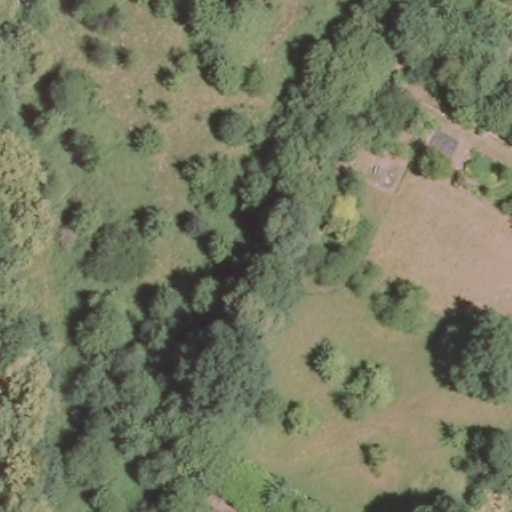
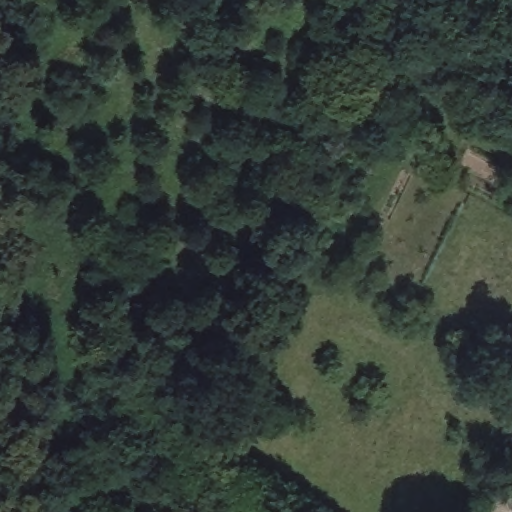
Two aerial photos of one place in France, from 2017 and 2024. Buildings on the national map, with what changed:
unchanged [(333,211),(321,237),(300,227),(312,201),(333,211)]

